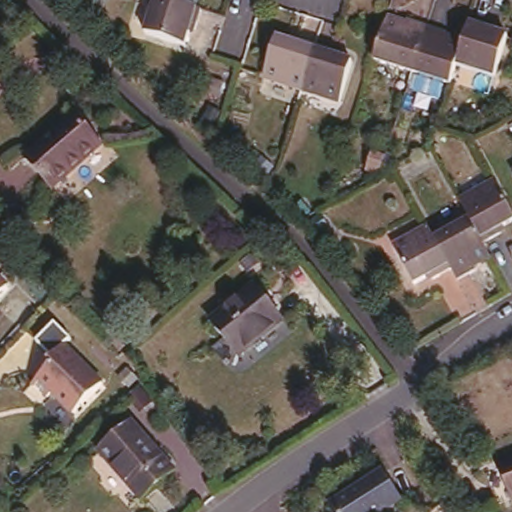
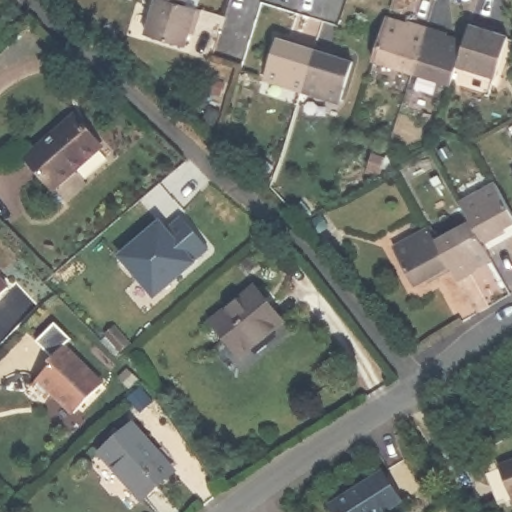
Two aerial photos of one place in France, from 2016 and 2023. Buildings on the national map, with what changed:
unchanged [(188,33),(184,43),(145,31),(155,0),(179,0),(185,2),(201,6),(195,26),(193,34),(188,33)]
unchanged [(185,2),(179,0),(186,0),(185,2)]
unchanged [(417,74),(379,62),(392,22),(410,28),(411,23),(431,29),(417,74)]
unchanged [(499,34),(512,38),(512,40),(500,79),(461,68),(468,45),(475,22),(495,28),(500,29),(499,34)]
unchanged [(461,68),(456,86),(417,74),(431,29),(451,36),(450,40),(468,45),(461,68)]
unchanged [(268,79),(281,40),(294,44),(296,39),(302,41),(320,47),(306,92),(268,79)]
unchanged [(347,56),(346,60),(357,64),(344,104),(306,92),(320,47),(340,53),(347,56)]
unchanged [(75,119),(101,150),(53,190),(27,160),(75,119)]
unchanged [(475,218),(465,200),(501,181),(512,201),(512,223),(511,224),(512,226),(512,228),(506,232),(488,242),(475,218)]
new [(211,253),(196,264),(155,300),(117,258),(162,219),(169,228),(181,217),(211,253)]
unchanged [(488,242),(495,255),(478,264),(480,268),(462,277),(457,267),(440,237),(475,218),(488,242)]
unchanged [(429,277),(419,283),(399,247),(434,226),(440,237),(457,267),(439,278),(432,281),(429,277)]
unchanged [(1,266),(0,267),(0,264),(1,266)]
unchanged [(9,281),(0,290),(0,271),(9,281)]
unchanged [(270,278),(298,313),(254,350),(226,314),(270,278)]
unchanged [(116,329),(128,346),(120,353),(107,336),(116,329)]
unchanged [(101,384),(71,411),(51,390),(46,395),(33,380),(53,362),(50,358),(65,345),(101,384)]
unchanged [(138,421),(180,469),(147,497),(106,449),(138,421)]
unchanged [(512,461),(512,496),(500,466),(512,461)]
unchanged [(377,471),(390,491),(395,498),(388,503),(382,506),(385,512),(384,512),(332,512),(326,503),(377,471)]

